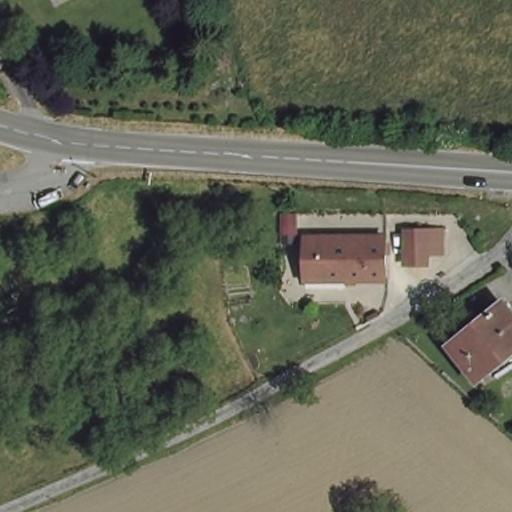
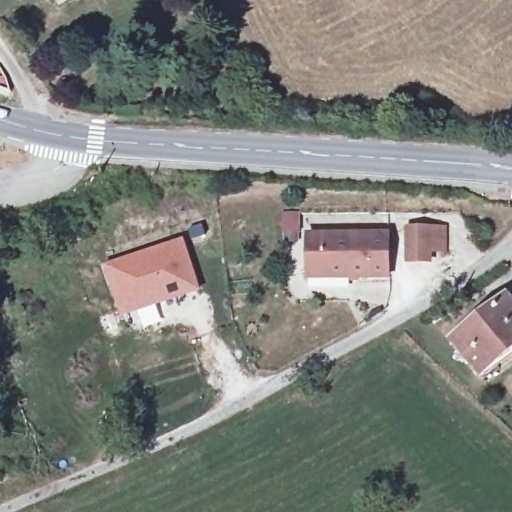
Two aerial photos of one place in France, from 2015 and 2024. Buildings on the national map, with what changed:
unchanged [(432,227),(434,257),(411,257),(411,228),(432,227)]
unchanged [(385,273),(304,275),(305,232),(386,230),(385,273)]
new [(122,316),(107,267),(182,242),(198,291),(122,316)]
unchanged [(509,303),(512,307),(512,357),(485,379),(457,345),(509,303)]

